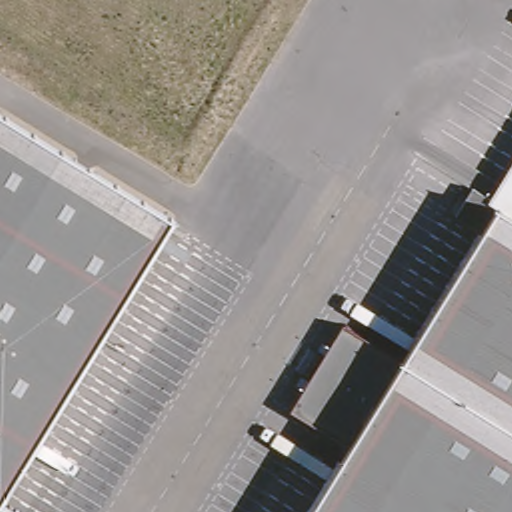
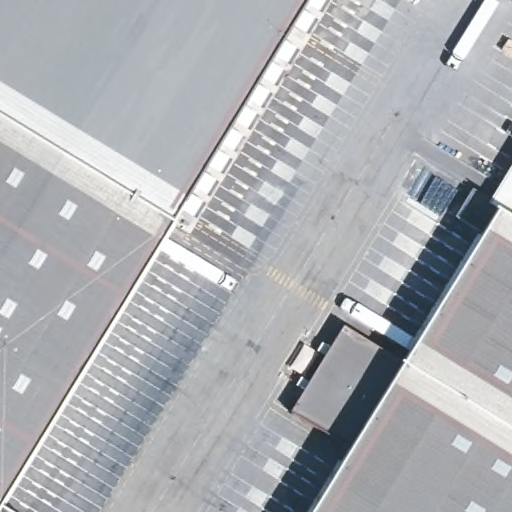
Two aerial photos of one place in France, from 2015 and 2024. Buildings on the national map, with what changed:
new [(0,0),(302,0),(168,216),(0,115),(0,0)]
unchanged [(0,497),(0,115),(168,216),(0,497)]
unchanged [(346,449),(291,413),(342,332),(395,369),(492,208),(487,198),(512,158),(512,512),(307,512),(346,449)]
unchanged [(0,503),(16,512),(0,512),(0,503)]

